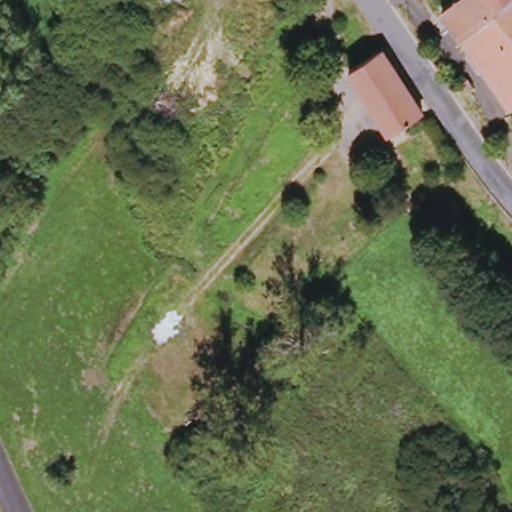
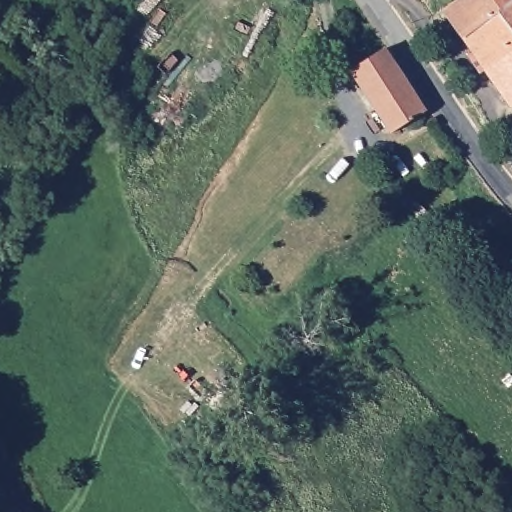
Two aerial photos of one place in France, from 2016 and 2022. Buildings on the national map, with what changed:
unchanged [(457,0),(512,0),(512,102),(507,105),(443,10),(457,0)]
unchanged [(383,55),(426,117),(394,139),(354,75),(383,55)]

